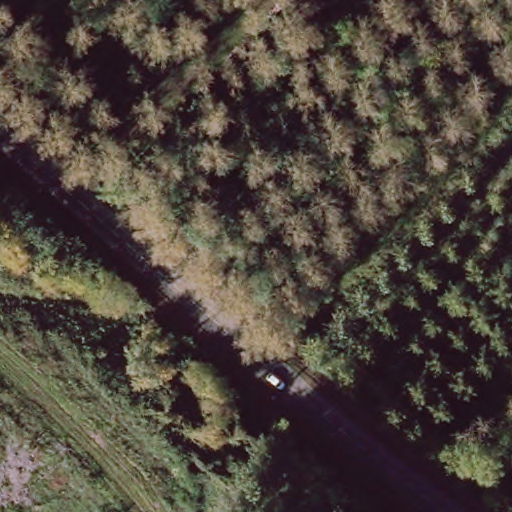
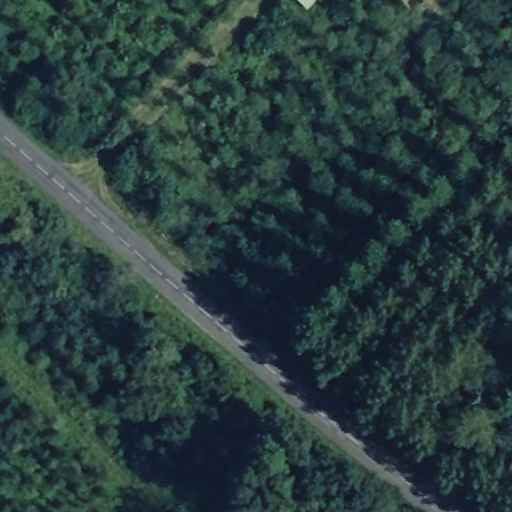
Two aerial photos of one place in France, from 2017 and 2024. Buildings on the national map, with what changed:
unchanged [(324,0),(318,9),(306,1),(304,0),(324,0)]

